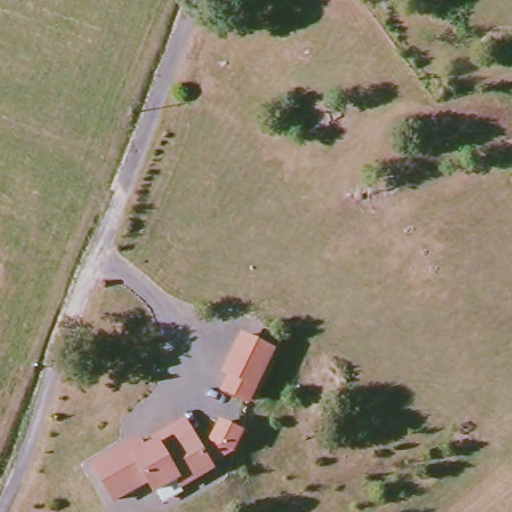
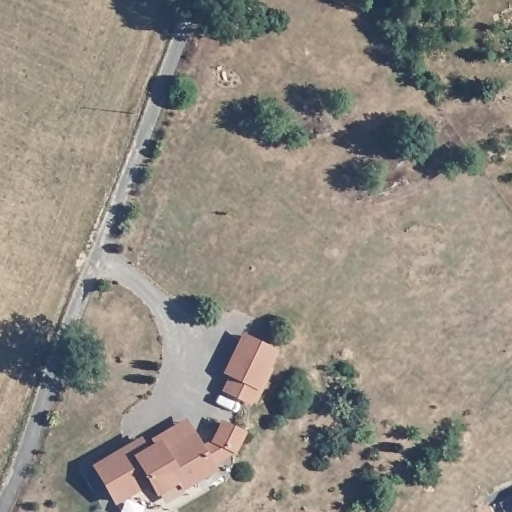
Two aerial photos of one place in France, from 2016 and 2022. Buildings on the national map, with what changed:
unchanged [(224,397),(231,382),(225,379),(235,357),(243,343),(272,357),(265,371),(247,407),(224,397)]
unchanged [(140,438),(145,447),(156,441),(165,453),(195,435),(215,467),(181,483),(178,477),(155,491),(149,481),(115,502),(92,463),(140,438)]

